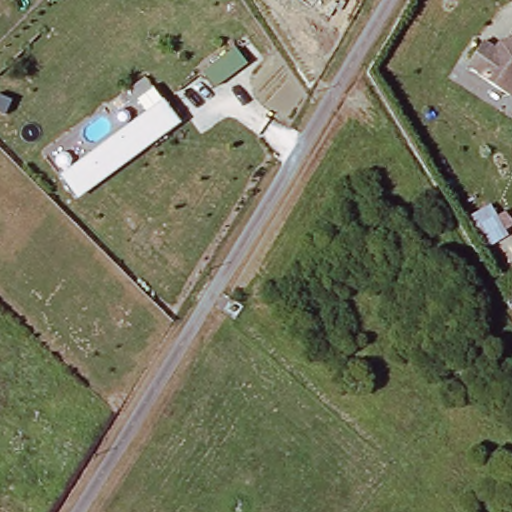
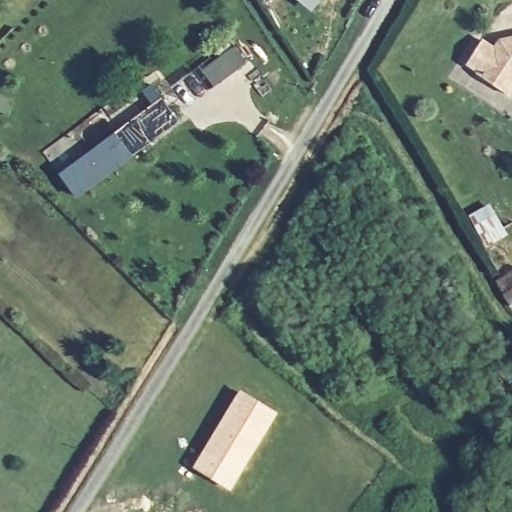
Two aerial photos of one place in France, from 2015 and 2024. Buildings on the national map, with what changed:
unchanged [(486,42),(495,49),(512,44),(512,94),(511,95),(479,76),(480,73),(470,65),(486,42)]
unchanged [(247,64),(212,87),(200,69),(235,47),(247,64)]
unchanged [(163,97),(178,118),(75,194),(60,174),(163,97)]
new [(239,389),(278,413),(230,491),(191,467),(239,389)]

